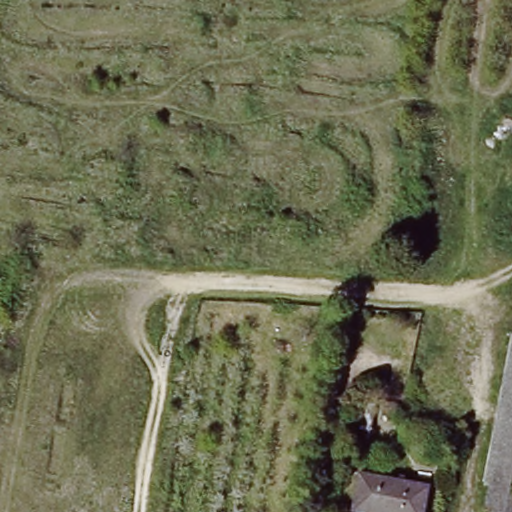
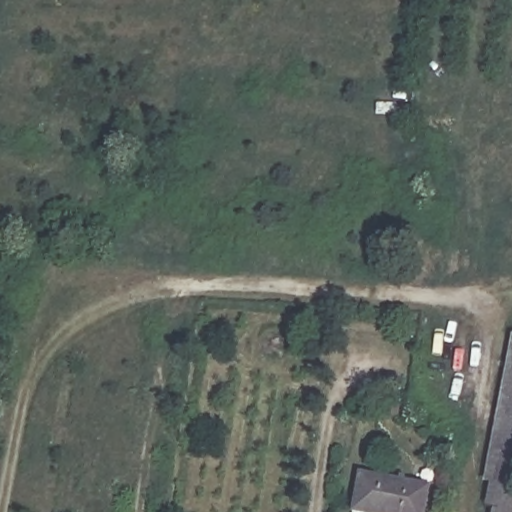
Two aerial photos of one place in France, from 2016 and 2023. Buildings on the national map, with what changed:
unchanged [(495,480),(484,478),(507,333),(512,334),(512,483),(495,480)]
unchanged [(416,512),(358,512),(349,510),(357,475),(420,490),(416,512)]
unchanged [(490,512),(495,480),(512,483),(512,512),(490,512)]

